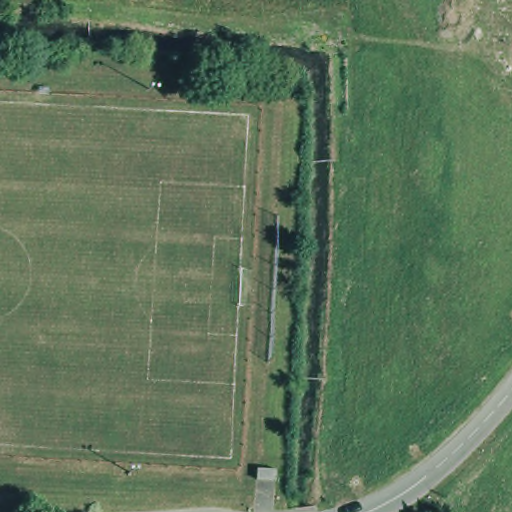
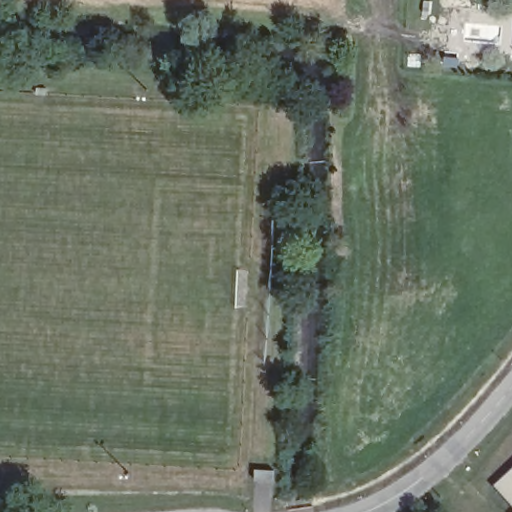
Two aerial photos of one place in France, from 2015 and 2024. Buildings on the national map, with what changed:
new [(493,488),(512,471),(512,509),(493,488)]

